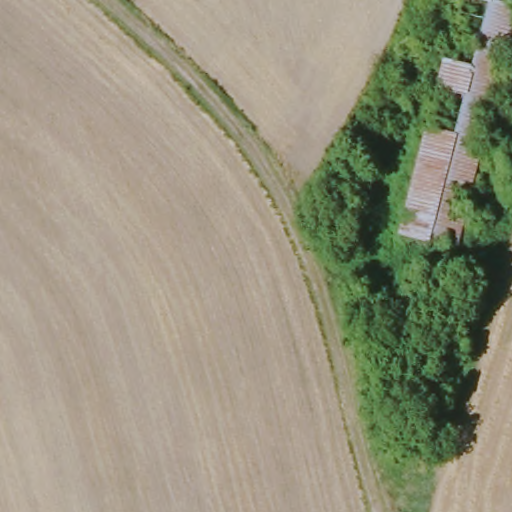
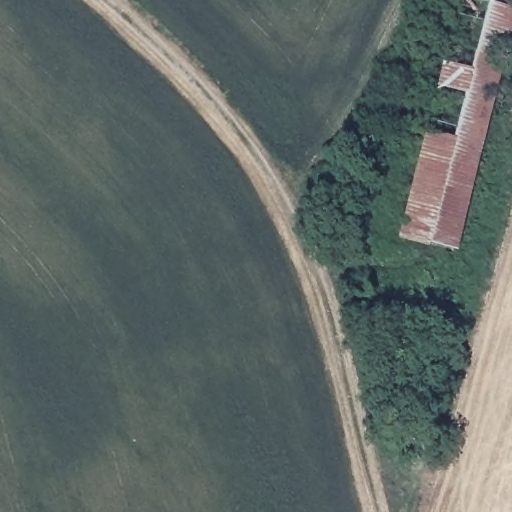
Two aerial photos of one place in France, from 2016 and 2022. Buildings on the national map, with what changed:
unchanged [(483,0),(512,5),(512,28),(455,250),(395,236),(420,129),(452,134),(461,101),(432,96),(440,64),(468,62),(483,0)]

